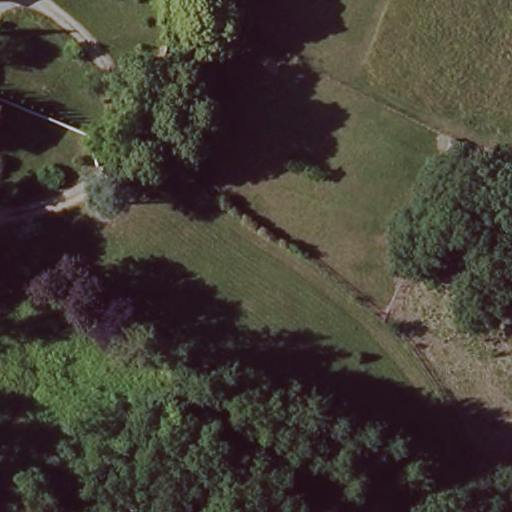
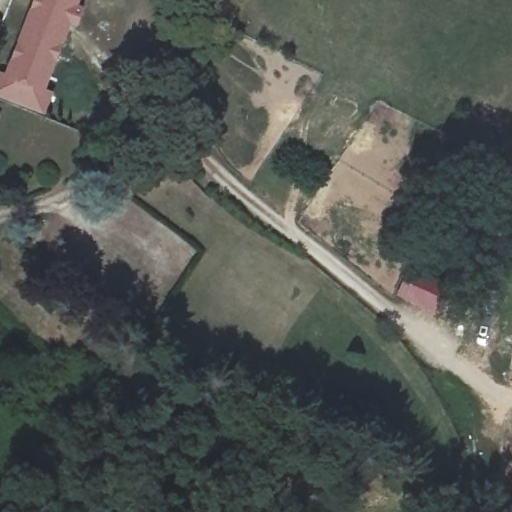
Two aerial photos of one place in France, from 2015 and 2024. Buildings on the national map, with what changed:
new [(0,75),(1,72),(8,74),(36,0),(84,0),(82,6),(88,8),(80,28),(73,27),(48,92),(57,94),(48,115),(0,97),(0,75)]
new [(411,269),(457,290),(445,319),(398,298),(411,269)]

